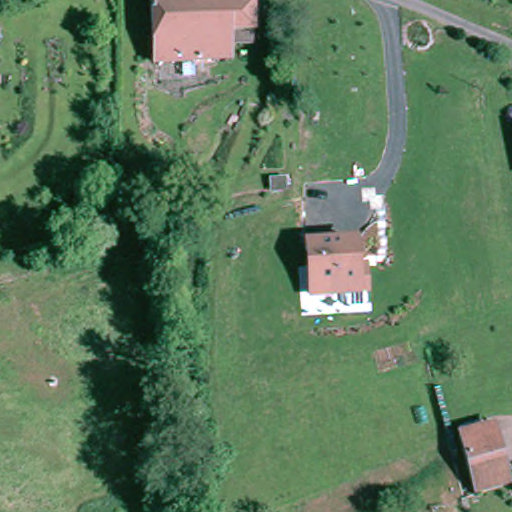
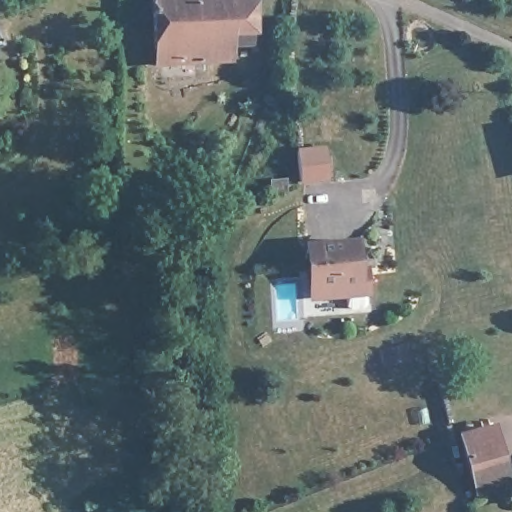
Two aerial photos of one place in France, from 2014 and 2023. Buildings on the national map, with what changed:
unchanged [(254,24),(228,26),(231,50),(154,57),(150,0),(252,0),(254,24)]
new [(329,146),(331,178),(299,181),(295,149),(329,146)]
unchanged [(85,209),(89,197),(102,200),(98,213),(85,209)]
unchanged [(357,237),(359,265),(366,265),(368,296),(306,300),(302,241),(357,237)]
unchanged [(507,486),(479,492),(462,436),(490,427),(507,486)]

